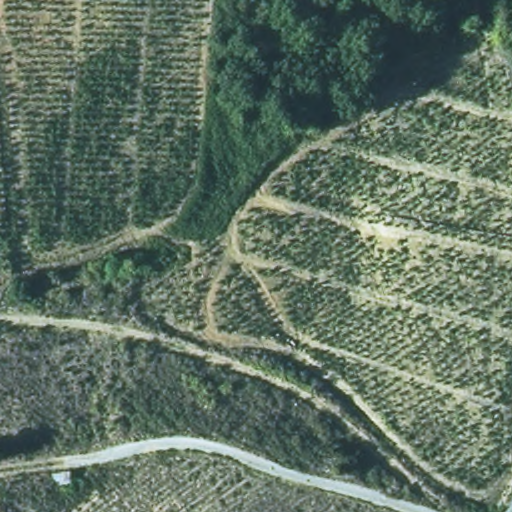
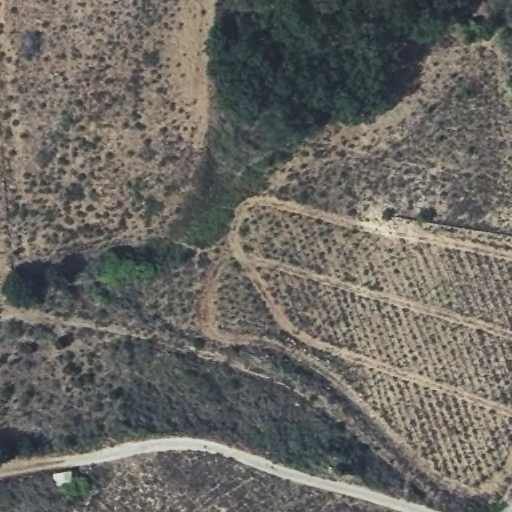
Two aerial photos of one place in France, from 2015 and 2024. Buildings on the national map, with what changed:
unchanged [(68,469),(74,478),(70,480),(57,488),(52,477),(51,473),(68,469)]

